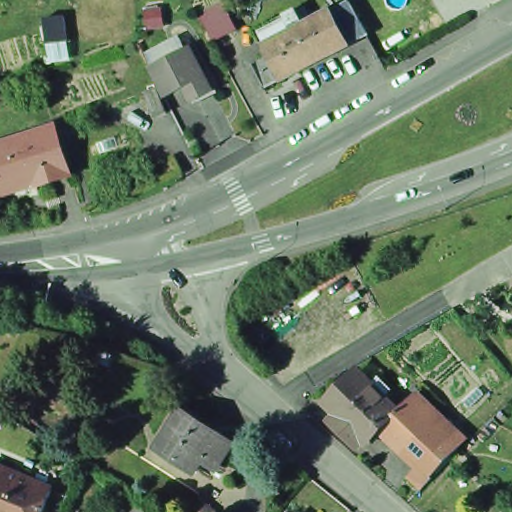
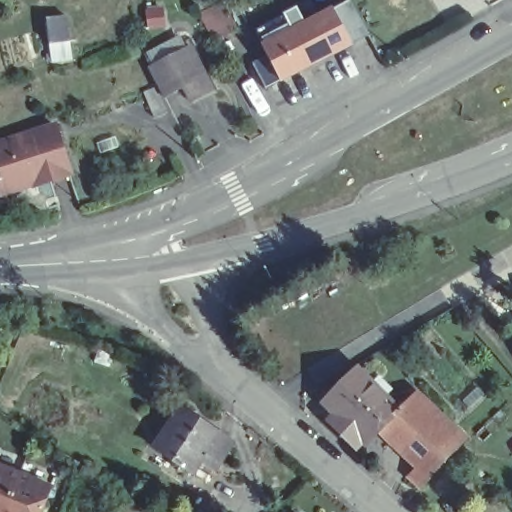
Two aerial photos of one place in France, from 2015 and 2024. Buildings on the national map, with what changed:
unchanged [(375,42),(307,82),(320,107),(272,127),(247,70),(265,63),(252,36),(300,10),(305,22),(348,6),(375,42)]
unchanged [(66,17),(69,42),(49,45),(46,20),(66,17)]
unchanged [(207,94),(200,82),(180,92),(170,74),(164,64),(204,42),(210,53),(227,84),(207,94)]
unchanged [(171,85),(182,110),(169,115),(158,90),(171,85)]
unchanged [(34,173),(4,182),(5,186),(2,187),(0,182),(0,138),(25,131),(55,121),(57,127),(70,171),(36,181),(34,173)]
unchanged [(367,442),(364,437),(357,446),(337,426),(344,418),(327,402),(359,370),(399,408),(380,427),(367,442)]
unchanged [(20,416),(37,393),(47,379),(84,406),(75,417),(57,444),(20,416)]
unchanged [(422,487),(410,475),(419,464),(380,427),(399,408),(417,390),(465,439),(430,476),(432,477),(422,487)]
unchanged [(220,463),(205,455),(198,466),(161,442),(184,406),(222,430),(236,438),(220,463)]
unchanged [(58,478),(52,494),(44,512),(0,512),(0,473),(20,481),(27,465),(58,478)]

